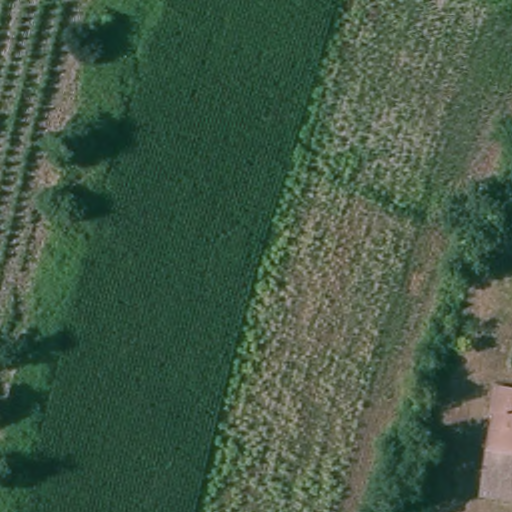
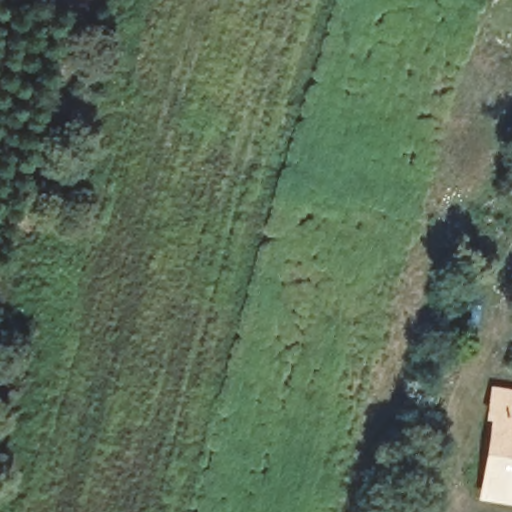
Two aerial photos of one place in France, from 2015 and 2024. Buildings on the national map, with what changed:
unchanged [(492,410),(499,383),(512,387),(512,494),(483,486),(501,413),(492,410)]

